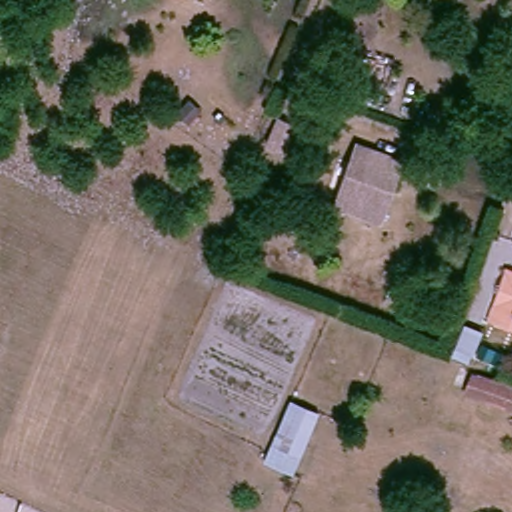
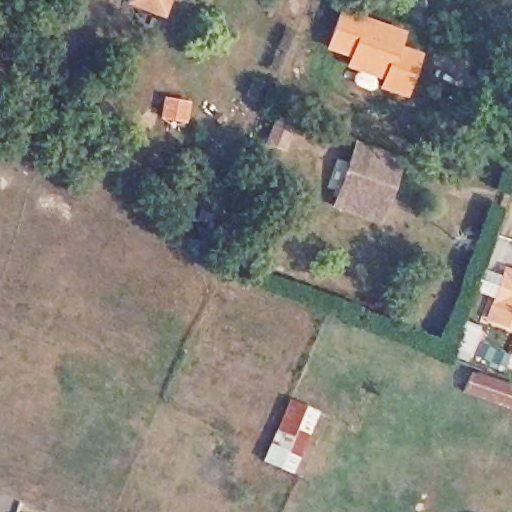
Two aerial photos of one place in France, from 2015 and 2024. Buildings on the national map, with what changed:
new [(165,19),(125,3),(126,0),(172,0),(165,19)]
new [(337,7),(406,30),(400,45),(421,52),(405,98),(376,88),(379,79),(343,66),(347,57),(323,49),(337,7)]
unchanged [(365,223),(334,211),(355,149),(403,167),(392,195),(379,229),(365,223)]
unchanged [(505,268),(512,271),(512,326),(487,318),(505,268)]
unchanged [(454,388),(461,373),(480,380),(512,393),(512,411),(473,396),(454,388)]
unchanged [(287,403),(323,419),(299,478),(261,462),(287,403)]

